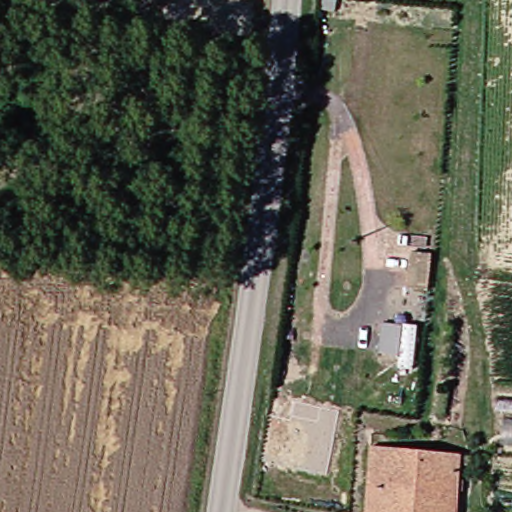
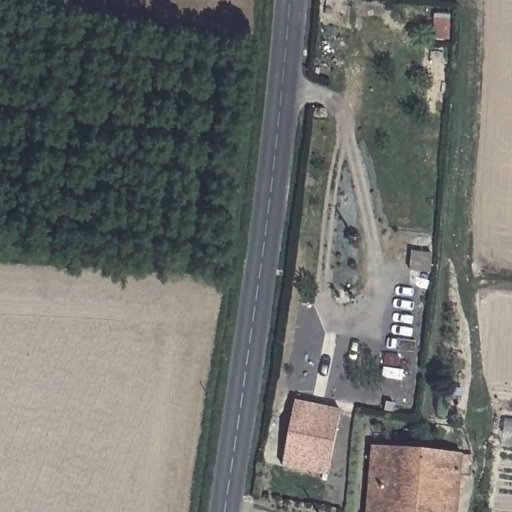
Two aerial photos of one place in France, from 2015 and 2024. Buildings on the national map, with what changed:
new [(341,409),(327,475),(282,466),(295,399),(341,409)]
unchanged [(376,449),(460,455),(459,497),(454,496),(420,496),(419,512),(369,512),(376,449)]
unchanged [(420,496),(454,496),(454,512),(419,512),(420,496)]

